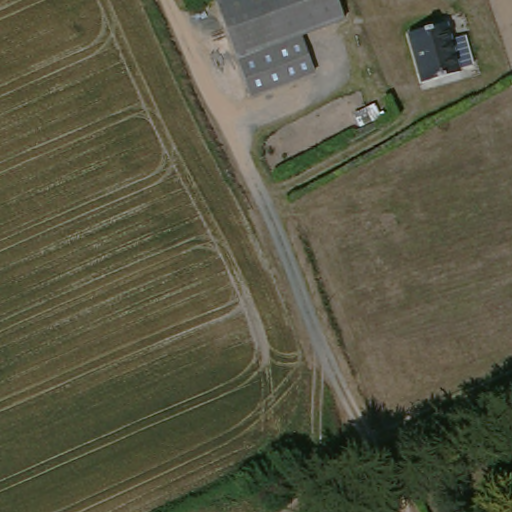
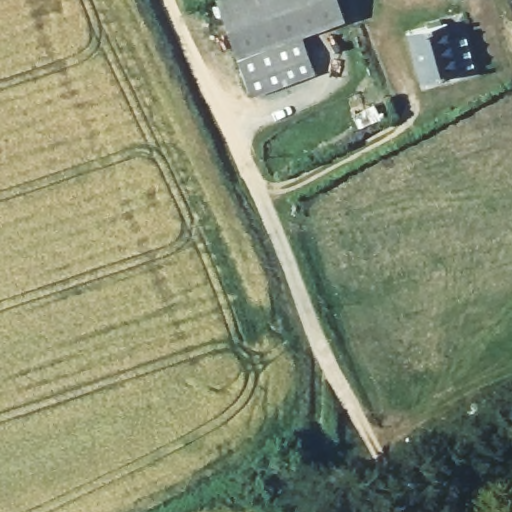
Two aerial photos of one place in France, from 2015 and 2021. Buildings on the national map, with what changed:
unchanged [(303,37),(316,76),(249,99),(216,0),(337,0),(344,22),(303,37)]
unchanged [(457,69),(422,79),(406,32),(444,22),(457,69)]

